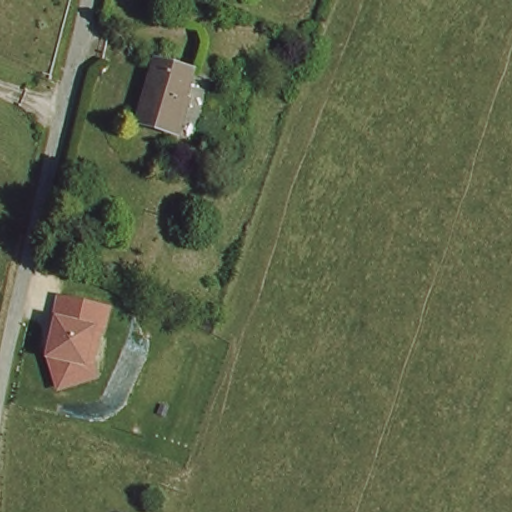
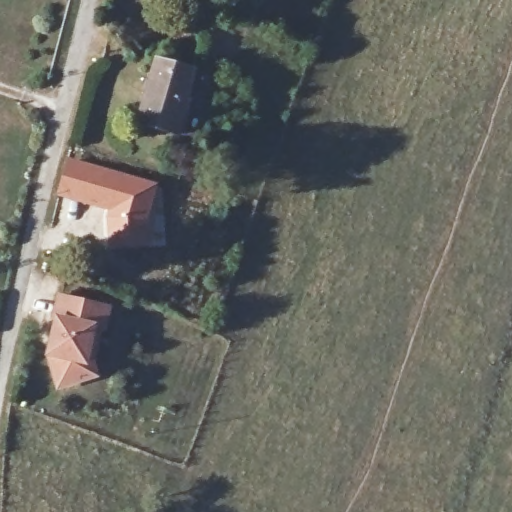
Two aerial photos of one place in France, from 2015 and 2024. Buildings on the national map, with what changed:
unchanged [(193,74),(186,105),(189,106),(180,137),(138,125),(157,62),(193,74)]
new [(66,156),(160,182),(153,214),(152,246),(106,247),(105,210),(56,195),(66,156)]
unchanged [(108,335),(102,333),(96,365),(103,379),(56,392),(47,355),(60,295),(115,307),(108,335)]

